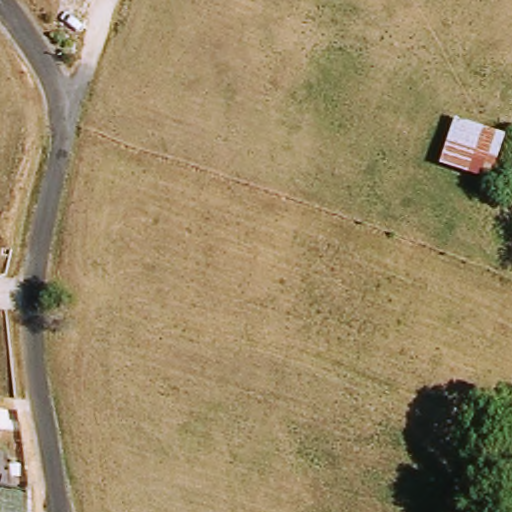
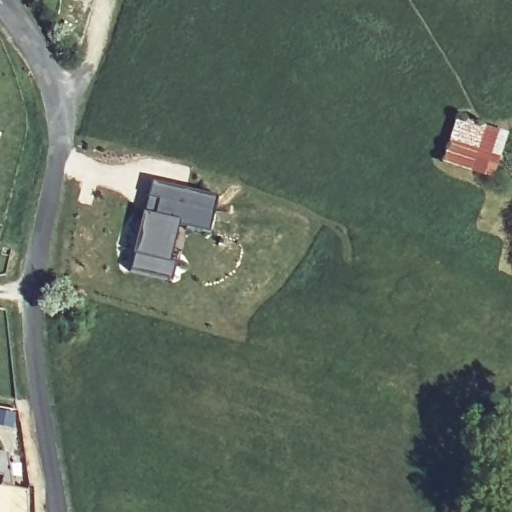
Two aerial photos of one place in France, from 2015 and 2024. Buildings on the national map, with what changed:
unchanged [(444,167),(458,122),(506,136),(493,181),(444,167)]
new [(209,234),(178,225),(169,262),(176,265),(171,282),(129,272),(152,183),(216,197),(209,234)]
unchanged [(14,482),(4,481),(3,473),(0,472),(0,448),(10,450),(14,482)]

